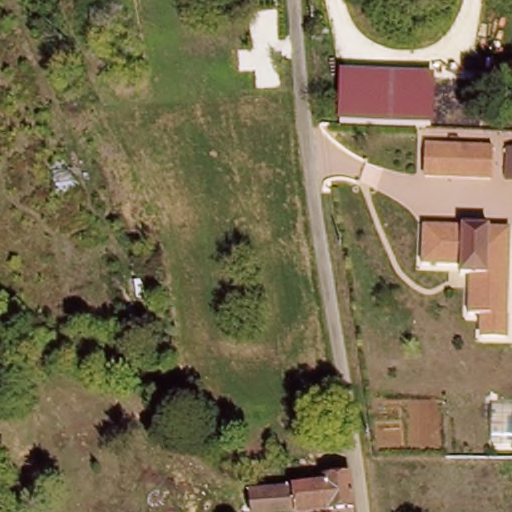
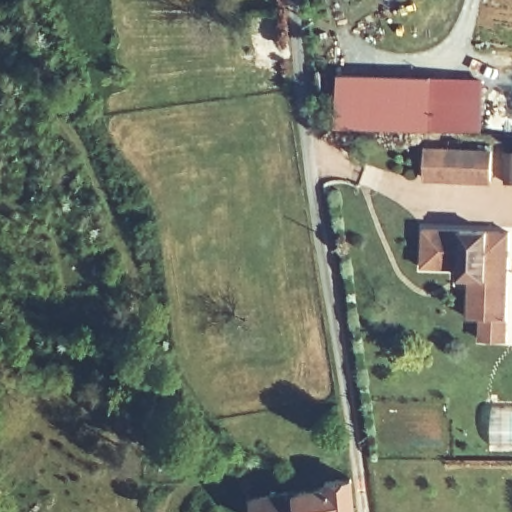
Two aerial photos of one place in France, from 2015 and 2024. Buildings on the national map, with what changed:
unchanged [(435,77),(432,130),(339,127),(340,74),(435,77)]
new [(485,79),(485,129),(432,130),(435,77),(485,79)]
unchanged [(491,181),(426,179),(427,150),(492,151),(491,181)]
unchanged [(507,180),(507,150),(512,150),(512,180),(507,180)]
unchanged [(421,224),(508,226),(508,333),(482,333),(482,312),(469,312),(470,273),(458,273),(460,263),(420,262),(421,224)]
unchanged [(324,478),(344,477),(348,512),(343,512),(252,512),(250,493),(325,486),(324,478)]

